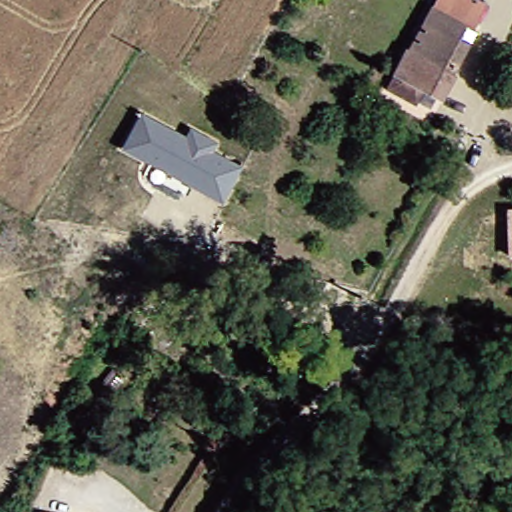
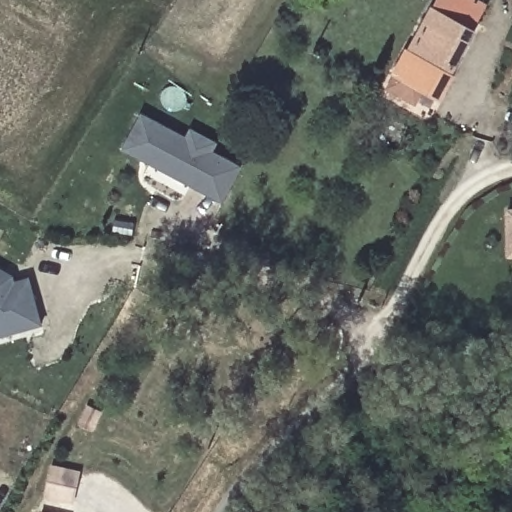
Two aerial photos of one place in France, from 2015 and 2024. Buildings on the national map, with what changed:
unchanged [(475,2),(426,92),(409,83),(401,96),(381,85),(428,0),(472,0),(475,2)]
unchanged [(462,24),(475,2),(486,8),(475,32),(470,40),(442,100),(435,97),(430,108),(418,102),(416,105),(401,96),(409,83),(426,92),(462,24)]
unchanged [(122,148),(140,112),(185,137),(189,129),(217,144),(213,152),(242,167),(222,203),(122,148)]
unchanged [(506,208),(512,207),(512,257),(508,257),(506,208)]
new [(13,283),(28,279),(41,322),(0,333),(0,269),(12,276),(13,283)]
unchanged [(51,512),(37,512),(37,509),(51,512)]

